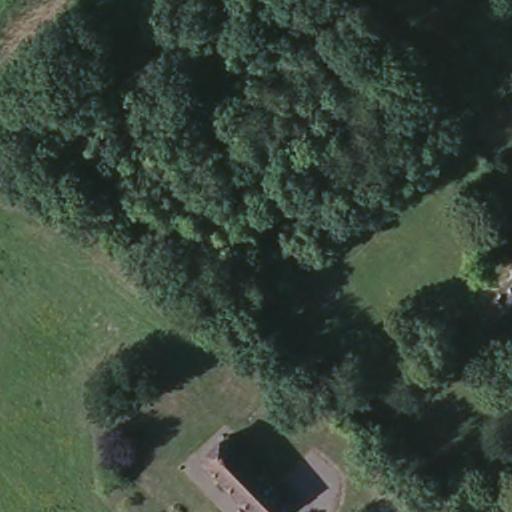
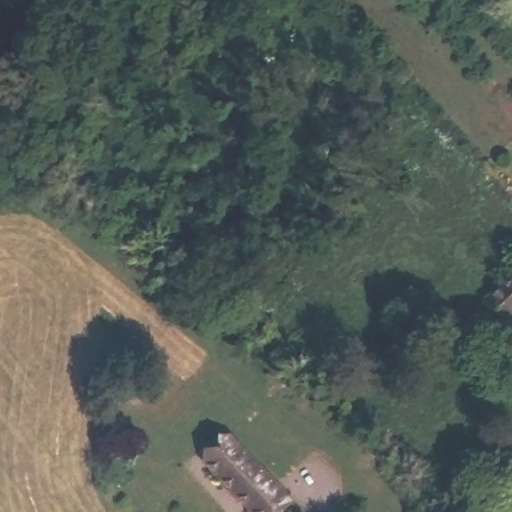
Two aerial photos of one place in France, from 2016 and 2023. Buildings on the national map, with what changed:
unchanged [(512,315),(491,297),(512,276),(512,315)]
unchanged [(290,495),(273,512),(258,512),(201,455),(227,430),(290,495)]

